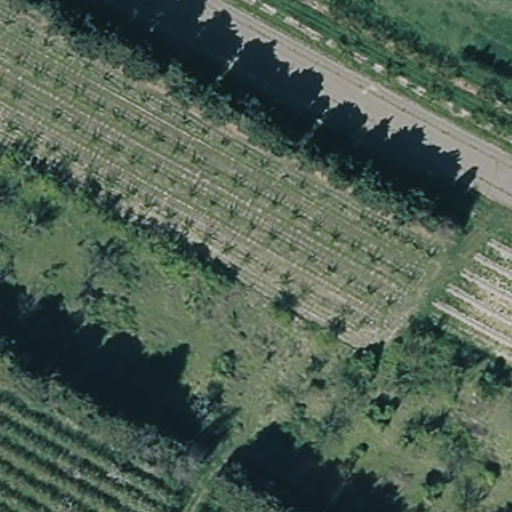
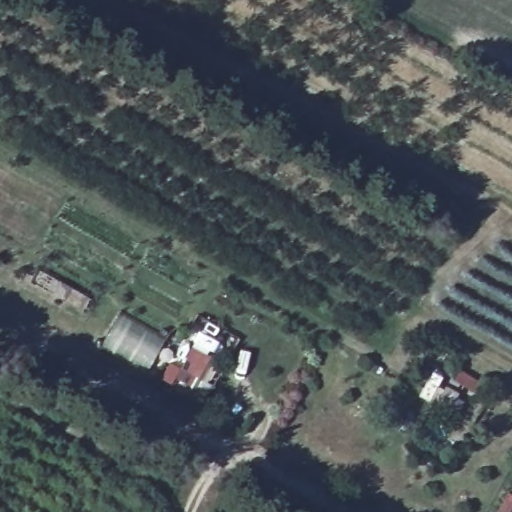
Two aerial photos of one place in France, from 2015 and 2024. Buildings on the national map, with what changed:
new [(103,343),(119,316),(164,341),(148,368),(103,343)]

